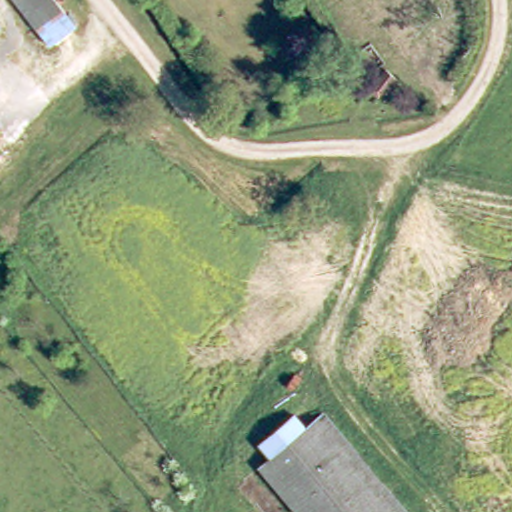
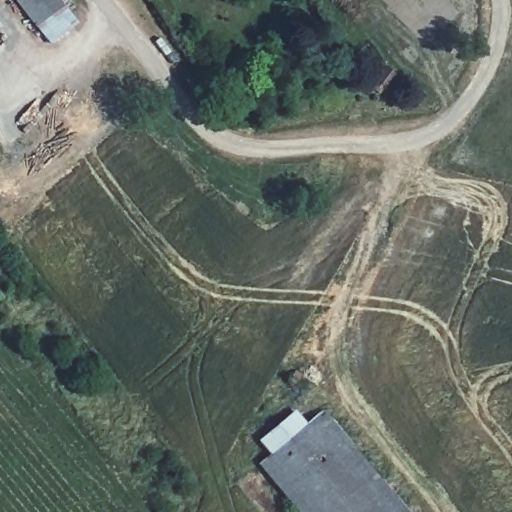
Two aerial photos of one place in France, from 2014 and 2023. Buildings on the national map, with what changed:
unchanged [(80,23),(55,41),(40,23),(32,29),(9,0),(62,0),(80,23)]
unchanged [(372,86),(377,81),(374,78),(385,66),(396,77),(385,89),(382,87),(377,92),(372,86)]
unchanged [(413,512),(402,512),(322,416),(329,410),(413,512)]
unchanged [(260,443),(297,412),(309,426),(322,416),(402,512),(302,512),(262,465),(272,457),(260,443)]

